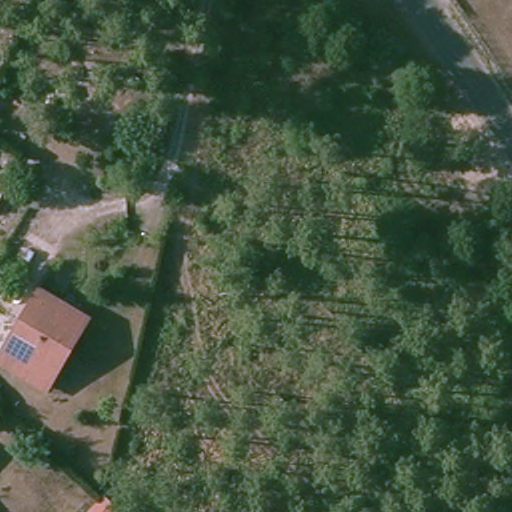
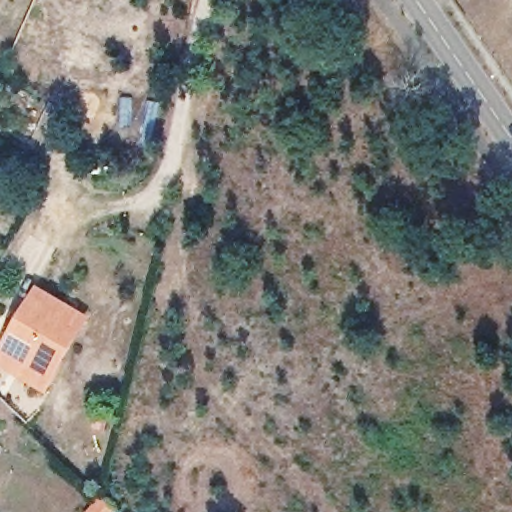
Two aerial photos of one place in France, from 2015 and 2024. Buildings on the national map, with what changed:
unchanged [(86,316),(80,329),(71,324),(47,369),(11,349),(41,292),(86,316)]
unchanged [(49,388),(4,364),(11,349),(47,369),(71,324),(80,329),(49,388)]
unchanged [(123,512),(103,512),(112,502),(123,512)]

